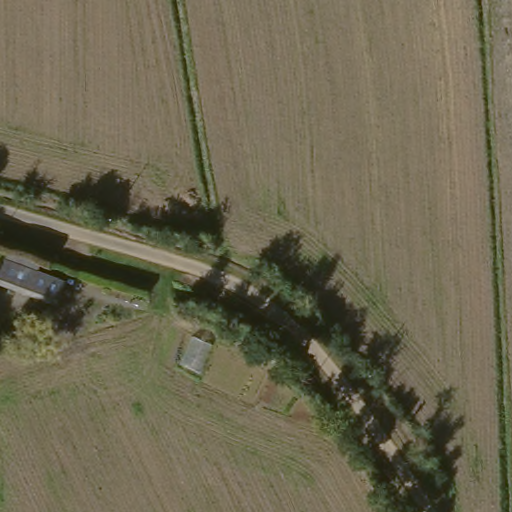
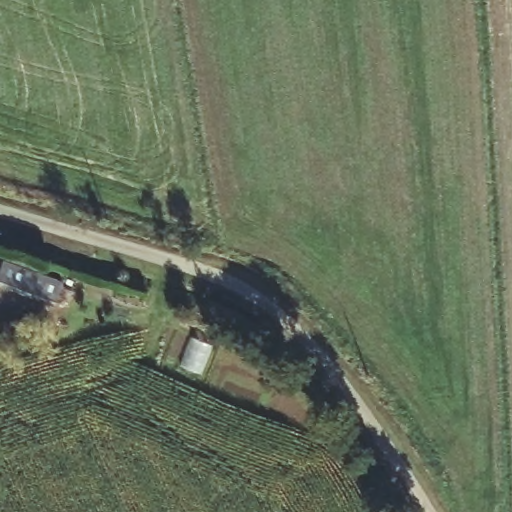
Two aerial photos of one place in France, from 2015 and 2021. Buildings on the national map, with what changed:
unchanged [(59,282),(52,304),(0,289),(0,264),(59,282)]

